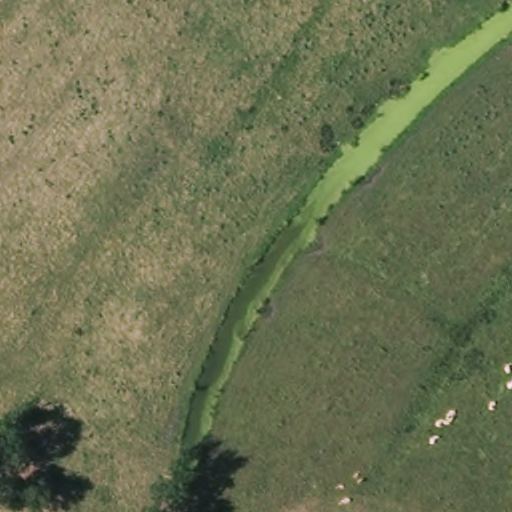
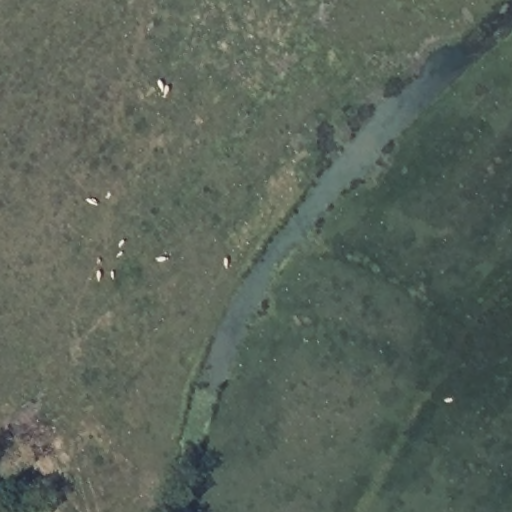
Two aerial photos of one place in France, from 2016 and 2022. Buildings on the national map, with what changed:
[]

